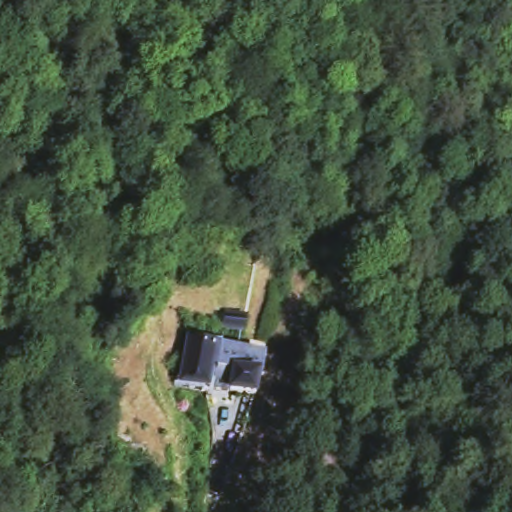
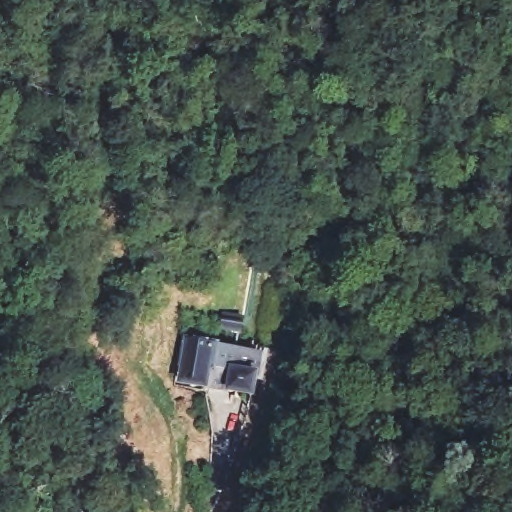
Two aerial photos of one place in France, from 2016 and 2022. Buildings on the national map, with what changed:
unchanged [(222,349),(257,347),(254,388),(227,385),(227,367),(211,365),(208,377),(181,371),(186,337),(222,349)]

